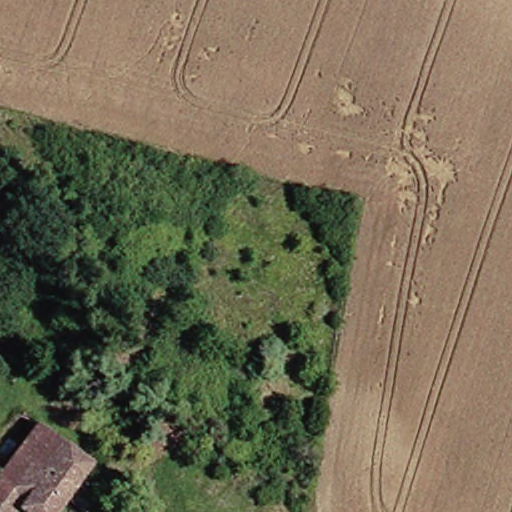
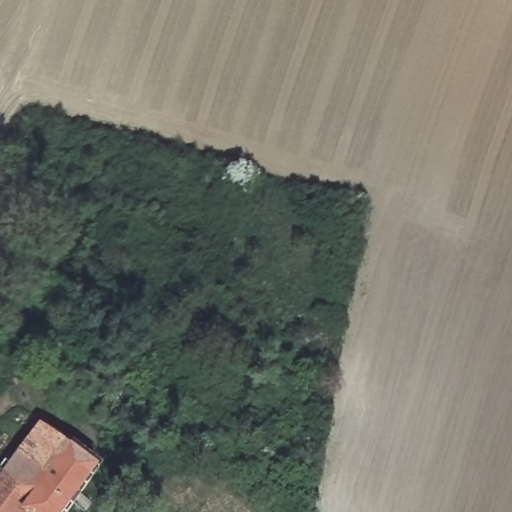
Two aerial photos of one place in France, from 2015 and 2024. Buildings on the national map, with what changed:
unchanged [(61,512),(23,512),(20,510),(19,512),(0,512),(0,459),(11,469),(53,422),(100,465),(61,512)]

